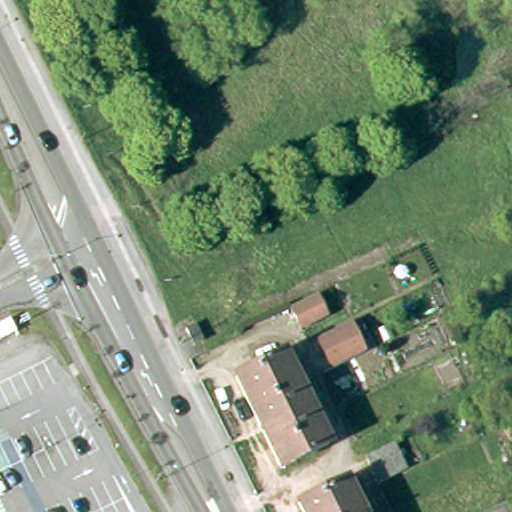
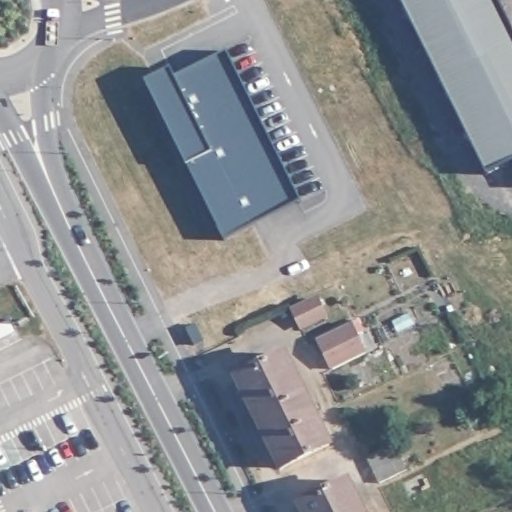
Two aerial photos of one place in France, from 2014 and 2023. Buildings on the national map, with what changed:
new [(486,171),(400,0),(492,0),(512,43),(512,156),(486,171)]
new [(174,69),(177,74),(228,49),(296,187),(218,225),(148,82),(174,69)]
new [(296,187),(303,200),(225,238),(218,225),(296,187)]
unchanged [(295,312),(319,303),(326,317),(302,327),(295,312)]
unchanged [(196,322),(202,336),(190,341),(184,327),(196,322)]
unchanged [(339,374),(324,343),(353,332),(366,362),(339,374)]
unchanged [(330,448),(287,468),(243,378),(288,358),(330,448)]
unchanged [(18,458),(0,466),(0,446),(10,441),(18,458)]
unchanged [(372,489),(363,470),(357,458),(387,444),(402,475),(372,489)]
unchanged [(361,512),(308,512),(300,496),(344,476),(361,512)]

